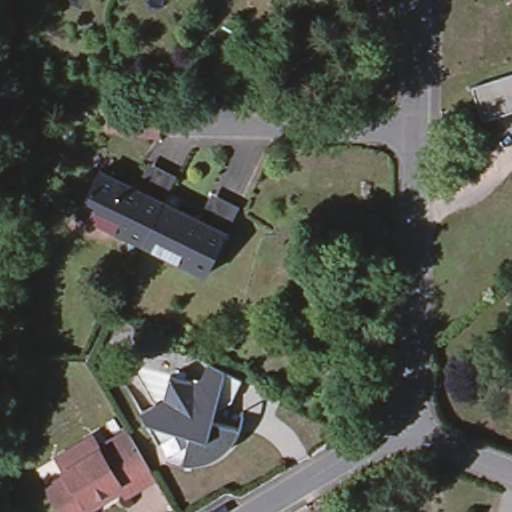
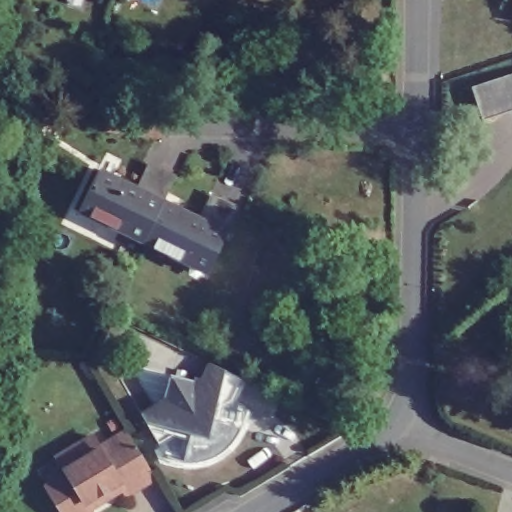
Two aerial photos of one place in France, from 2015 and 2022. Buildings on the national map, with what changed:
unchanged [(482,120),(471,86),(512,73),(512,111),(482,120)]
unchanged [(22,119),(22,104),(22,90),(43,91),(43,105),(42,119),(22,119)]
unchanged [(117,108),(159,113),(157,133),(109,127),(110,108),(117,108)]
unchanged [(95,170),(139,192),(152,166),(170,175),(157,201),(138,240),(75,210),(75,211),(74,210),(94,169),(95,170)]
unchanged [(202,223),(215,197),(234,206),(201,272),(200,272),(200,271),(138,240),(157,201),(202,223)]
unchanged [(285,334),(277,353),(264,346),(273,328),(285,334)]
unchanged [(157,441),(145,421),(140,411),(155,402),(161,404),(170,372),(199,380),(209,360),(227,369),(242,376),(230,398),(214,408),(212,419),(240,426),(239,428),(236,433),(235,435),(233,437),(232,440),(230,442),(226,446),(222,449),(220,451),(217,452),(215,453),(213,455),(210,456),(208,457),(205,458),(200,459),(197,460),(195,460),(192,460),(190,460),(187,460),(185,460),(182,460),(165,456),(157,441)]
unchanged [(94,448),(122,430),(150,475),(120,494),(117,489),(113,482),(79,504),(83,511),(84,512),(56,512),(42,488),(63,475),(52,458),(87,436),(94,448)]

